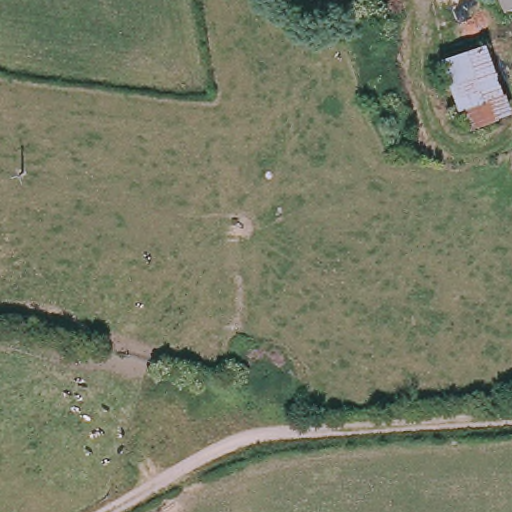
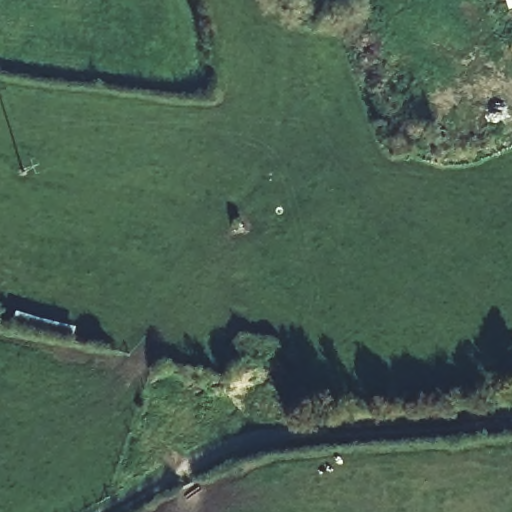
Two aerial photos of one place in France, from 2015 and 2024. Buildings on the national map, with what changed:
unchanged [(501,0),(504,0),(501,1),(501,0)]
demolished [(504,0),(512,0),(512,11),(508,12),(504,0)]
demolished [(512,115),(470,126),(444,56),(490,40),(512,107),(512,115)]

